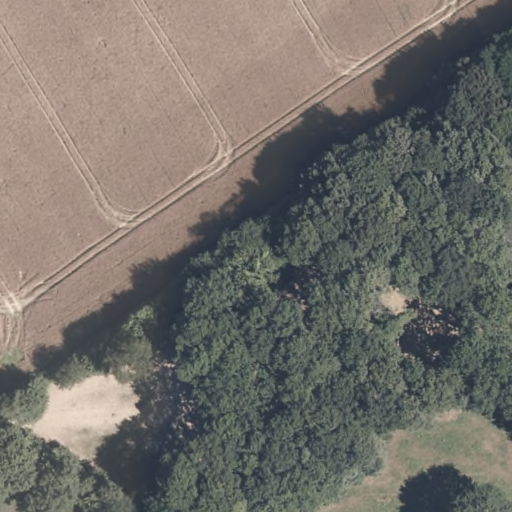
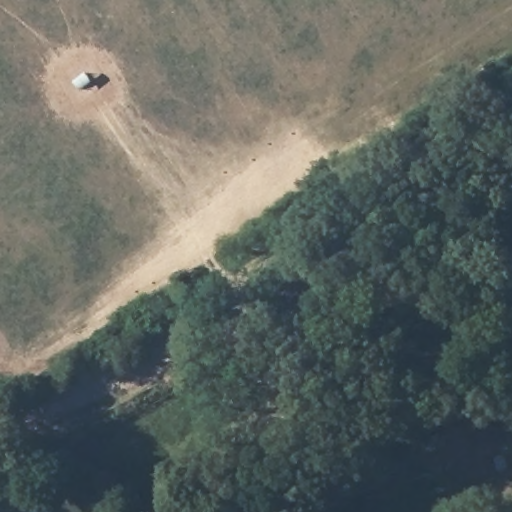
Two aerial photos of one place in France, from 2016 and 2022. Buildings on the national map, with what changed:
unchanged [(512,227),(512,276),(499,230),(512,227)]
unchanged [(512,394),(502,383),(512,375),(512,394)]

